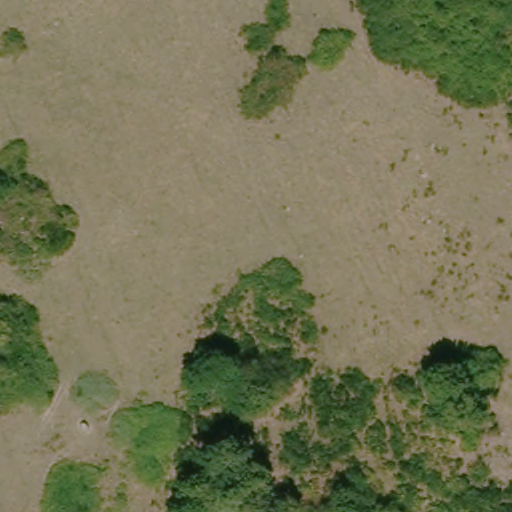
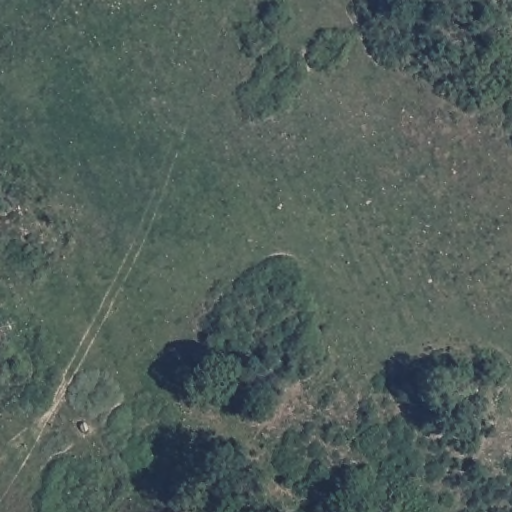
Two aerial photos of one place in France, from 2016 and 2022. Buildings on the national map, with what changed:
[]

